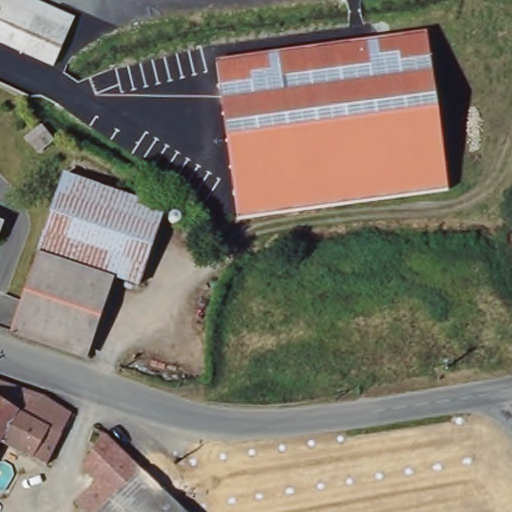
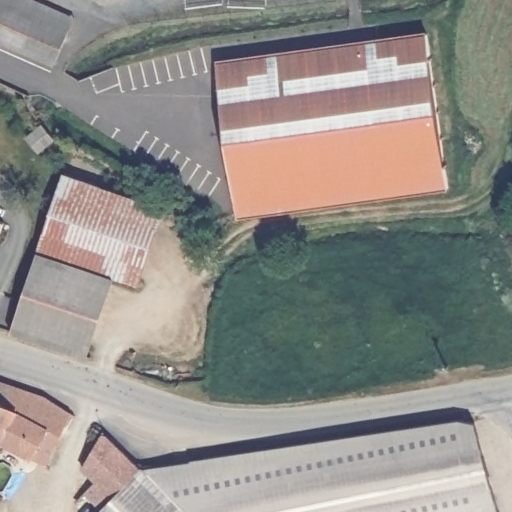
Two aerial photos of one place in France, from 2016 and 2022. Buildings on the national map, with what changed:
unchanged [(8,0),(69,28),(54,60),(0,36),(0,0),(8,0)]
unchanged [(216,61),(426,37),(445,193),(444,193),(297,210),(232,217),(216,61)]
unchanged [(140,286),(112,277),(84,357),(81,355),(25,337),(15,333),(31,278),(34,268),(47,231),(47,230),(48,226),(65,174),(167,208),(140,286)]
unchanged [(3,227),(0,233),(0,225),(3,227)]
unchanged [(40,392),(42,394),(67,409),(43,461),(0,439),(0,378),(40,392)]
new [(175,508),(172,505),(137,470),(459,419),(475,424),(500,512),(178,512),(175,508)]
unchanged [(73,504),(91,483),(79,470),(101,435),(137,470),(172,505),(175,508),(178,512),(81,512),(73,504)]
demolished [(263,448),(271,447),(299,443),(320,440),(345,435),(352,472),(339,475),(341,488),(298,498),(296,481),(262,488),(265,508),(245,512),(239,512),(232,499),(231,497),(226,482),(218,462),(222,454),(263,448)]
demolished [(385,510),(412,503),(447,496),(450,512),(386,512),(385,510)]

